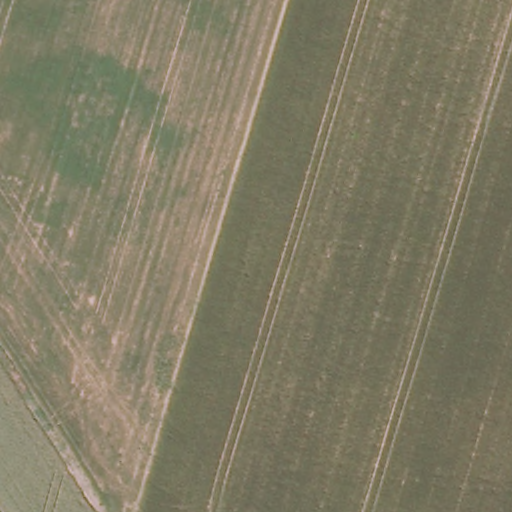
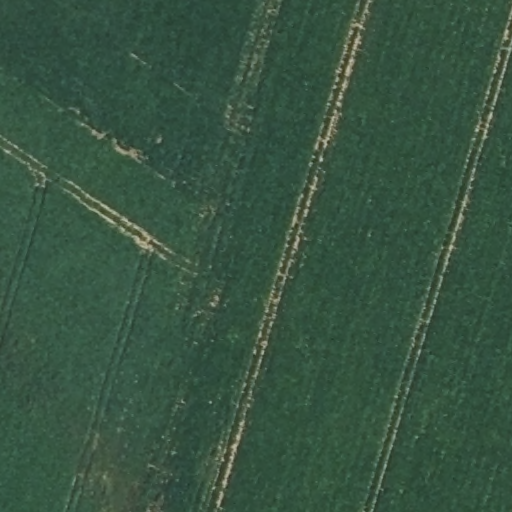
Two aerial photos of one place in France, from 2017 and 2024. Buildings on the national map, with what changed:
[]

